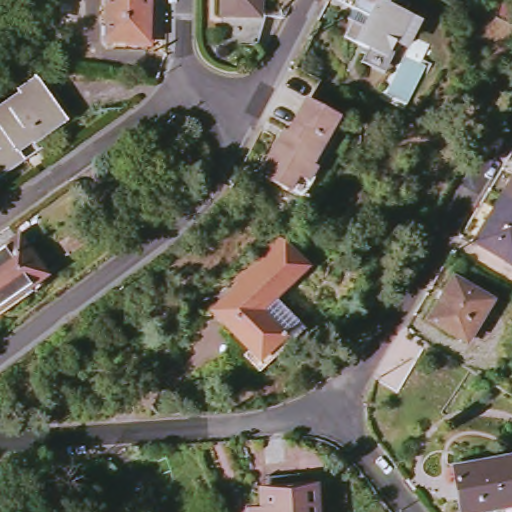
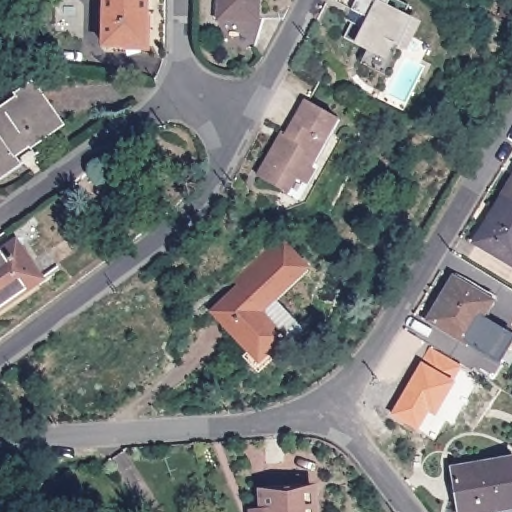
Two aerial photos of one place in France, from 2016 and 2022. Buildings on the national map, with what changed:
unchanged [(105,45),(106,0),(149,0),(148,46),(105,45)]
unchanged [(221,0),(259,0),(259,3),(266,3),(256,33),(220,32),(221,0)]
unchanged [(354,23),(349,21),(354,11),(360,0),(399,0),(410,5),(406,14),(414,18),(400,47),(386,75),(364,64),(369,51),(347,39),(354,23)]
unchanged [(21,102),(18,98),(36,85),(63,124),(29,148),(26,144),(12,155),(18,164),(0,177),(0,118),(21,102)]
unchanged [(256,174),(276,137),(281,139),(304,97),(334,113),(306,162),(311,164),(302,180),(292,175),(284,189),(256,174)]
unchanged [(512,180),(512,200),(503,195),(512,180)]
unchanged [(512,265),(474,242),(503,195),(512,200),(512,265)]
unchanged [(16,245),(41,283),(0,311),(0,257),(16,245)]
unchanged [(216,312),(286,246),(307,268),(274,299),(298,324),(261,359),(216,312)]
unchanged [(429,320),(454,278),(492,301),(477,327),(471,323),(461,340),(429,320)]
new [(471,323),(477,327),(482,319),(511,336),(498,362),(461,340),(471,323)]
new [(433,346),(460,362),(449,380),(452,382),(434,414),(427,410),(416,429),(391,414),(433,346)]
unchanged [(512,458),(512,509),(492,512),(460,512),(453,467),(512,458)]
unchanged [(266,477),(298,474),(299,486),(313,486),(314,512),(269,512),(266,477)]

